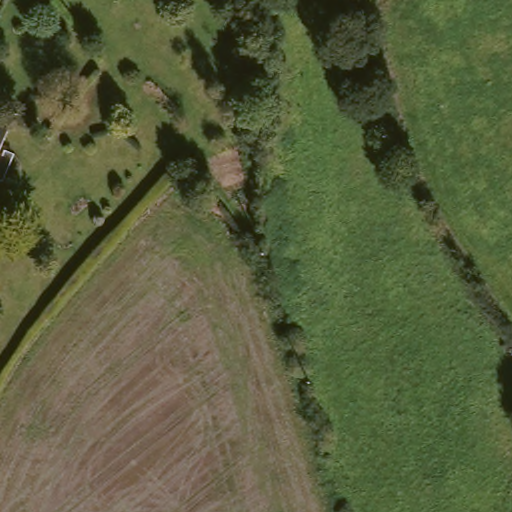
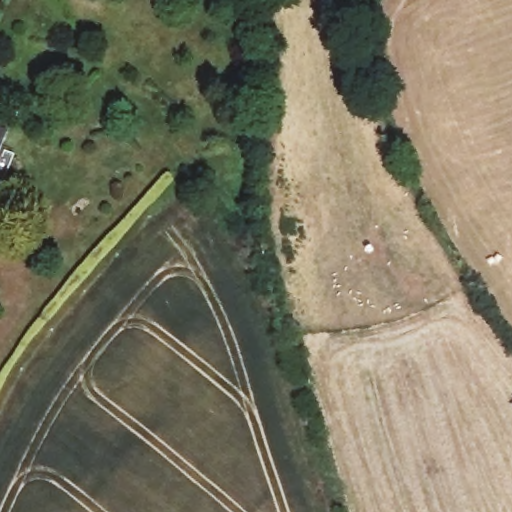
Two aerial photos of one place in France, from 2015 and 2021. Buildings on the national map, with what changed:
unchanged [(0,143),(0,130),(5,132),(0,143)]

